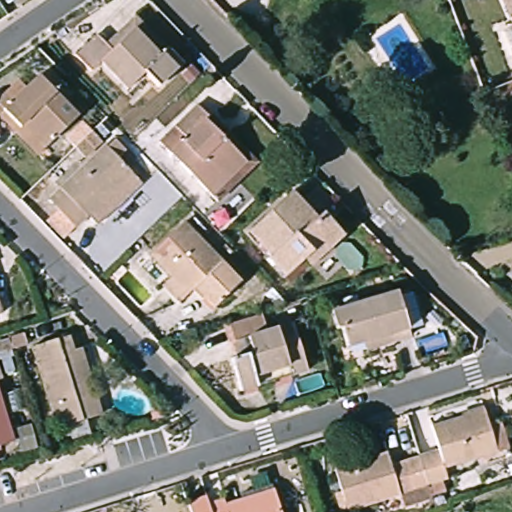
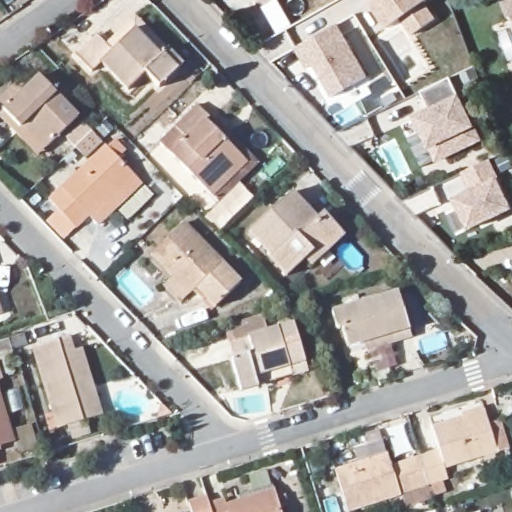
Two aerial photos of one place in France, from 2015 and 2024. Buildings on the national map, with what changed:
new [(425,2),(435,18),(411,35),(400,18),(387,28),(370,4),(374,0),(429,0),(425,2)]
unchanged [(505,5),(503,0),(512,0),(512,15),(510,15),(505,5)]
unchanged [(182,65),(160,88),(145,74),(128,90),(100,62),(90,72),(76,57),(97,36),(106,45),(135,17),(182,65)]
new [(307,69),(295,49),(337,24),(368,77),(332,98),(313,65),(307,69)]
unchanged [(43,156),(5,117),(0,122),(0,100),(1,101),(23,80),(30,87),(42,76),(83,119),(43,156)]
new [(430,149),(413,116),(428,109),(421,91),(450,77),(460,94),(476,127),(484,141),(436,165),(430,149)]
unchanged [(219,202),(161,143),(198,105),(256,165),(219,202)]
unchanged [(86,132),(95,142),(80,158),(70,148),(86,132)]
unchanged [(43,222),(54,210),(45,201),(100,146),(127,174),(126,175),(135,185),(112,208),(110,205),(90,225),(83,217),(72,229),(61,241),(43,222)]
new [(498,177),(512,206),(512,210),(469,230),(452,198),(468,190),(461,174),(490,159),(498,177)]
unchanged [(311,267),(306,262),(288,279),(268,260),(271,256),(249,233),(291,194),(316,220),(325,212),(346,235),(311,267)]
unchanged [(165,285),(173,276),(153,256),(184,224),(241,283),(216,309),(196,288),(190,295),(182,303),(165,285)]
unchanged [(388,293),(390,297),(397,295),(407,302),(413,326),(399,330),(401,339),(357,352),(354,344),(338,348),(333,328),(326,330),(321,313),(388,293)]
unchanged [(0,311),(0,302),(2,310),(0,311)]
unchanged [(261,322),(290,315),(303,361),(235,381),(226,350),(233,348),(223,313),(256,303),(261,322)]
unchanged [(0,360),(0,342),(10,339),(25,335),(27,346),(13,350),(15,355),(0,360)]
unchanged [(59,430),(35,347),(68,337),(72,351),(81,348),(101,416),(59,430)]
unchanged [(2,380),(0,381),(0,373),(2,380)]
unchanged [(0,447),(0,398),(13,443),(0,447)]
unchanged [(403,509),(398,492),(348,508),(335,467),(387,450),(392,463),(420,454),(438,448),(432,426),(485,410),(488,421),(500,418),(508,445),(445,465),(447,476),(453,494),(403,509)]
unchanged [(209,507),(225,502),(226,506),(276,492),(282,512),(190,512),(187,505),(206,499),(209,507)]

